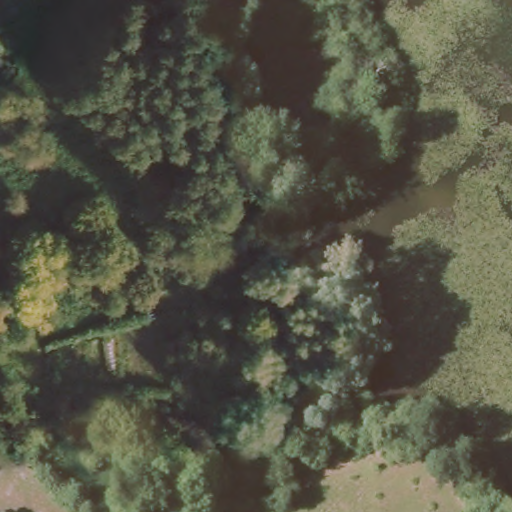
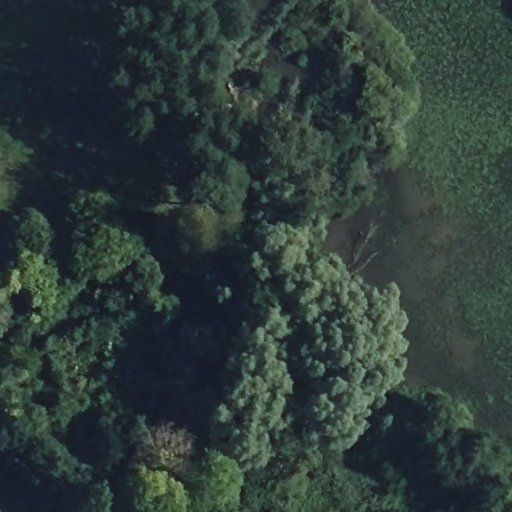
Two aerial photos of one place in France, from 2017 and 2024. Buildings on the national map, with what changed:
unchanged [(219,250),(236,249),(234,289),(216,288),(219,250)]

